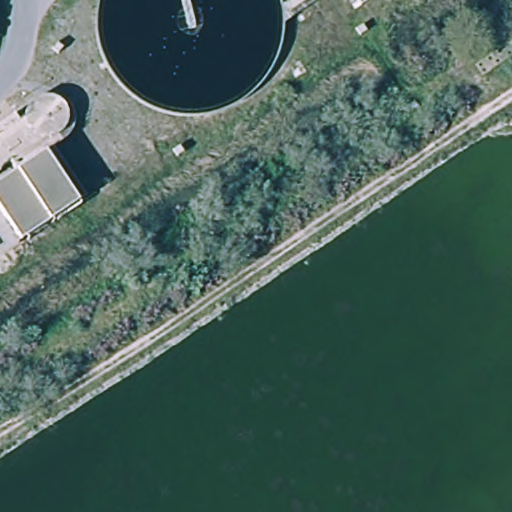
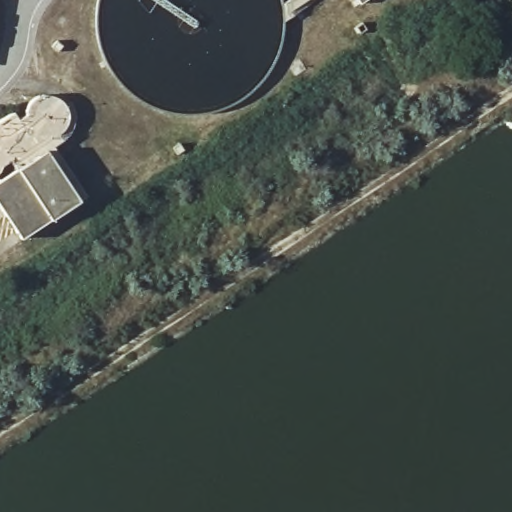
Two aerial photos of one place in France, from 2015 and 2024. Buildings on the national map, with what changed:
unchanged [(285,15),(280,0),(308,0),(285,15)]
unchanged [(360,6),(356,0),(370,0),(360,6)]
unchanged [(28,129),(33,135),(40,140),(48,140),(57,139),(60,145),(47,152),(78,201),(22,240),(0,207),(0,176),(1,175),(5,166),(4,156),(0,149),(0,137),(26,120),(28,129)]

